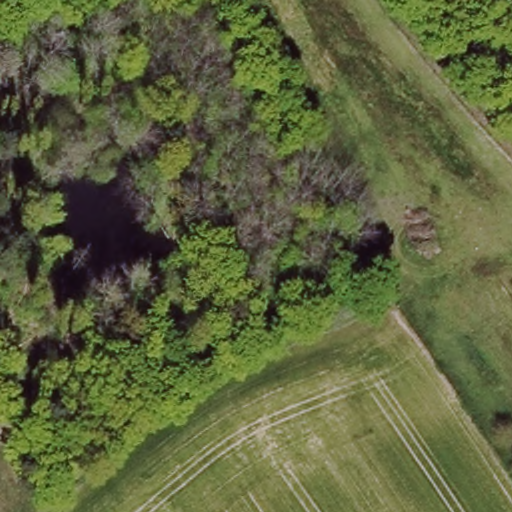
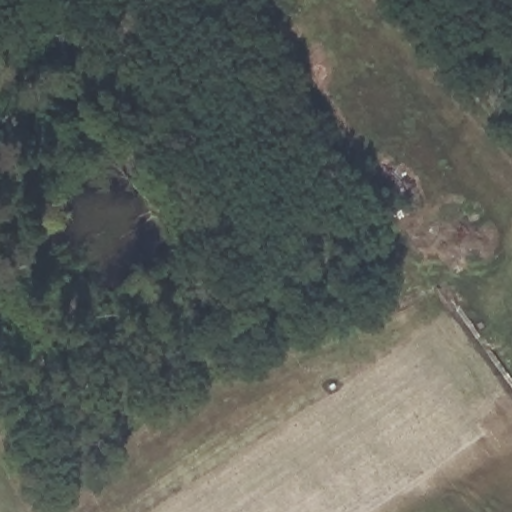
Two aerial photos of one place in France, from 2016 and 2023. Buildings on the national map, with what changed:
unchanged [(50,36),(81,26),(86,40),(73,46),(75,56),(57,62),(50,36)]

